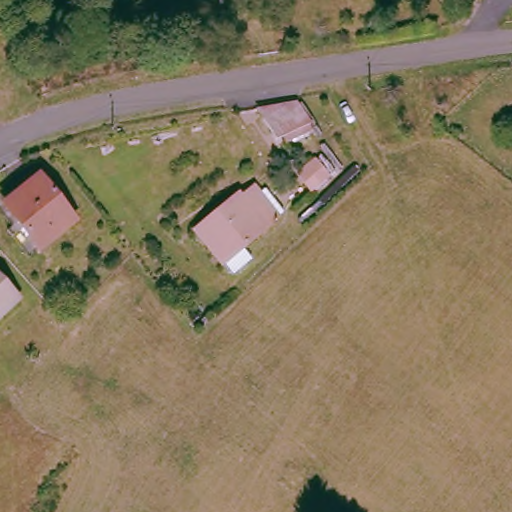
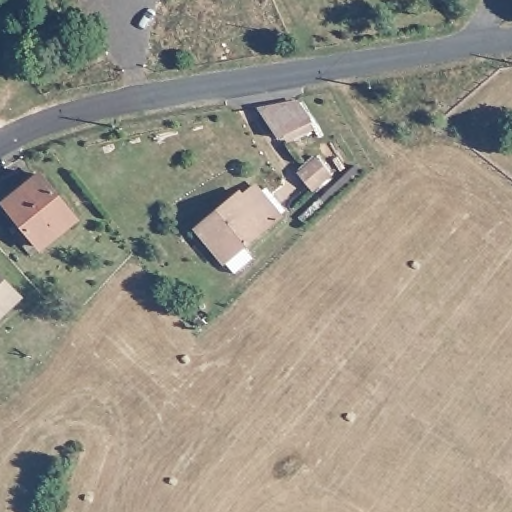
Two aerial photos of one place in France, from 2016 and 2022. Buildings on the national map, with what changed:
unchanged [(310,137),(273,144),(259,112),(299,106),(310,137)]
unchanged [(324,189),(306,197),(299,179),(318,172),(324,189)]
unchanged [(8,202),(44,178),(74,221),(41,247),(8,202)]
unchanged [(254,204),(261,197),(281,218),(243,256),(253,267),(238,284),(195,241),(246,191),(254,204)]
unchanged [(0,322),(0,285),(18,305),(0,322)]

